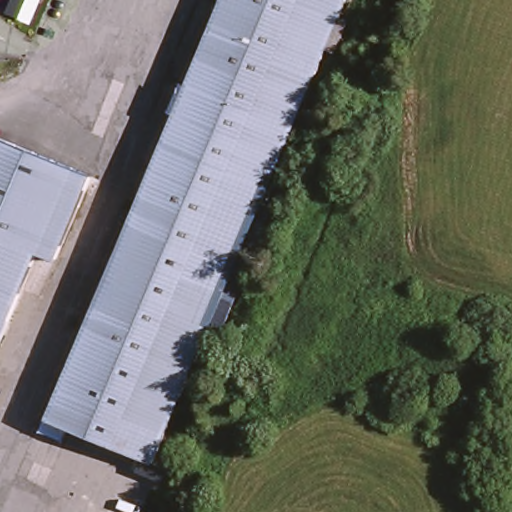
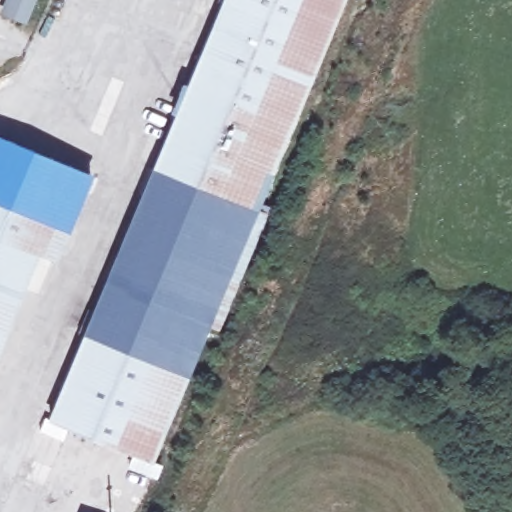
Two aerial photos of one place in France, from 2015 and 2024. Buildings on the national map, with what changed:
unchanged [(249,267),(237,296),(226,291),(157,457),(56,414),(228,0),(346,0),(238,262),(249,267)]
unchanged [(95,170),(60,254),(42,246),(0,346),(0,131),(95,170)]
unchanged [(84,510),(90,512),(83,512),(84,510)]

